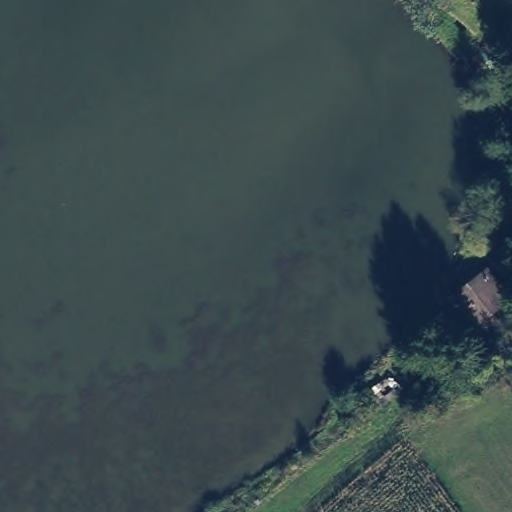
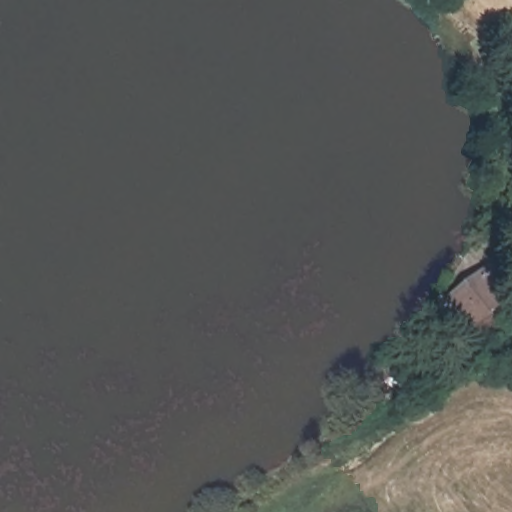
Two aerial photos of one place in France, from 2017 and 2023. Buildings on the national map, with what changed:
unchanged [(512,296),(512,297),(478,322),(457,296),(492,270),(512,296)]

